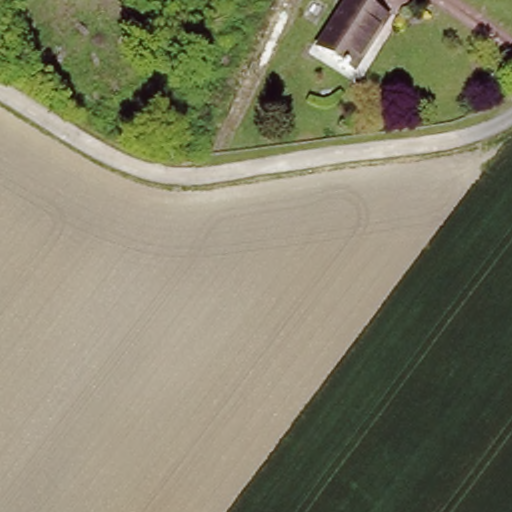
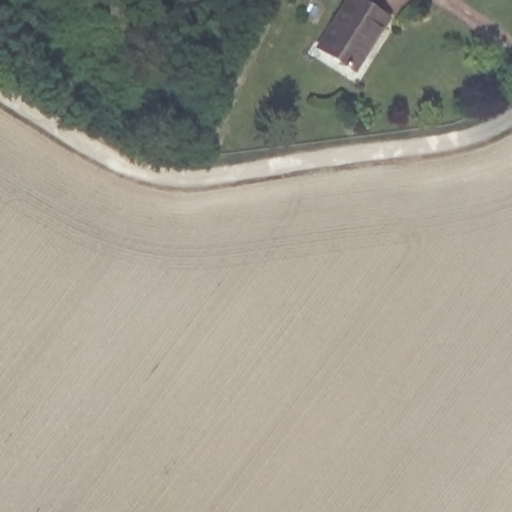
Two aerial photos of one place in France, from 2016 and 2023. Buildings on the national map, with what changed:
unchanged [(340,0),(356,0),(375,11),(382,15),(373,31),(354,68),(315,46),(340,0)]

